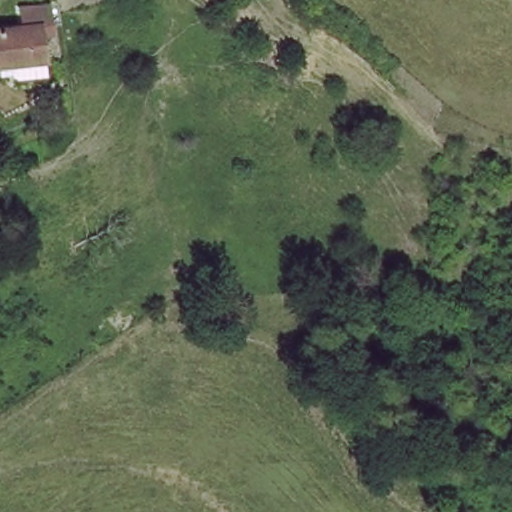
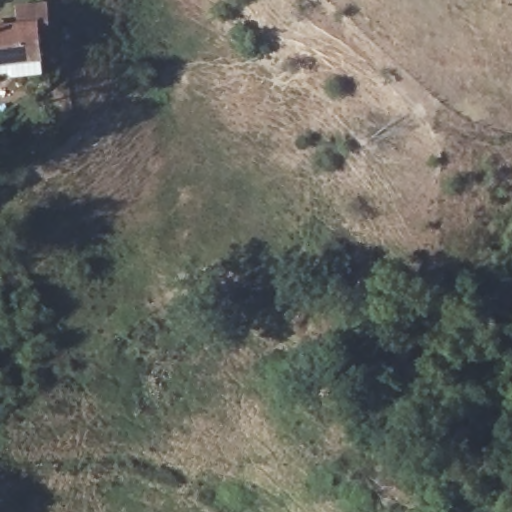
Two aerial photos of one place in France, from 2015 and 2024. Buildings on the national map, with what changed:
unchanged [(3,92),(2,87),(0,88),(0,15),(17,15),(16,0),(42,0),(42,22),(38,22),(35,22),(33,74),(32,89),(3,92)]

